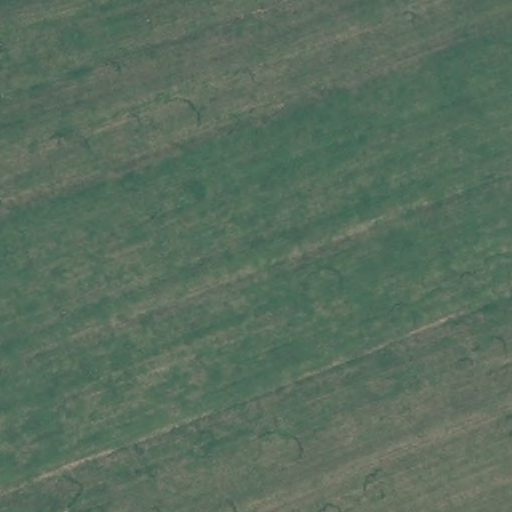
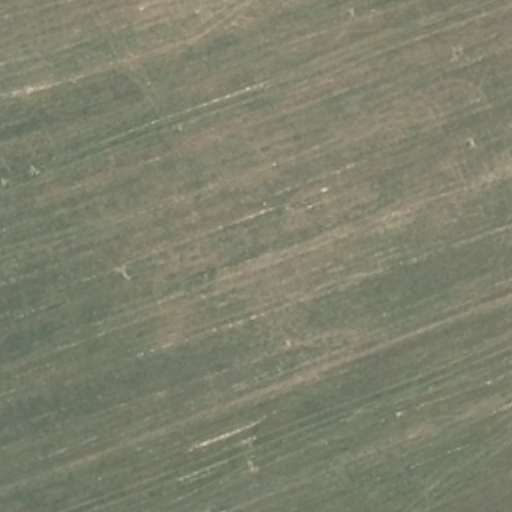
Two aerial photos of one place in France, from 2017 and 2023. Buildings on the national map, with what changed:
[]

